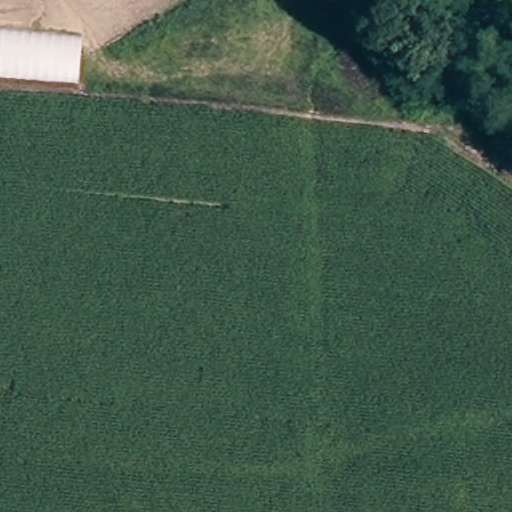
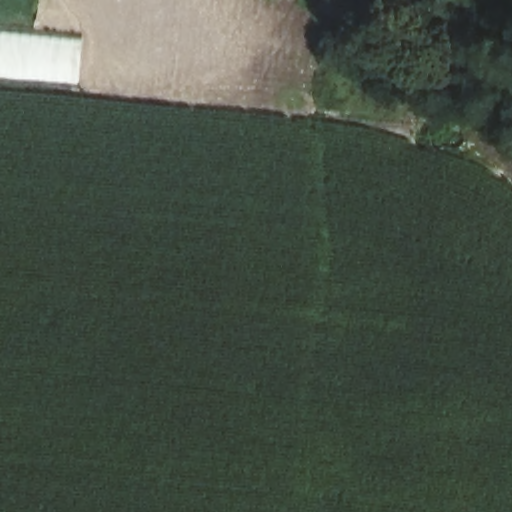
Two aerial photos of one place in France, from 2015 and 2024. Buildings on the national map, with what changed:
unchanged [(81,80),(0,75),(0,33),(86,43),(81,80)]

